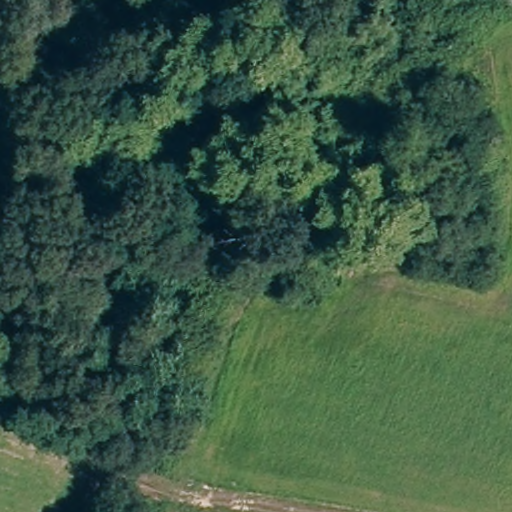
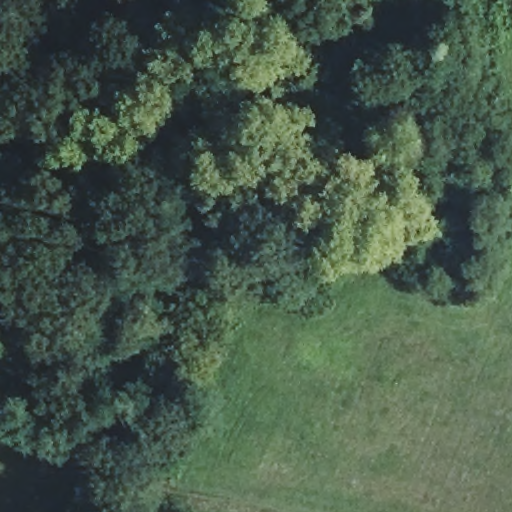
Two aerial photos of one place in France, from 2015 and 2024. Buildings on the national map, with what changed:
unchanged [(351,161),(371,125),(410,144),(418,131),(439,140),(406,206),(336,171),(343,158),(351,161)]

